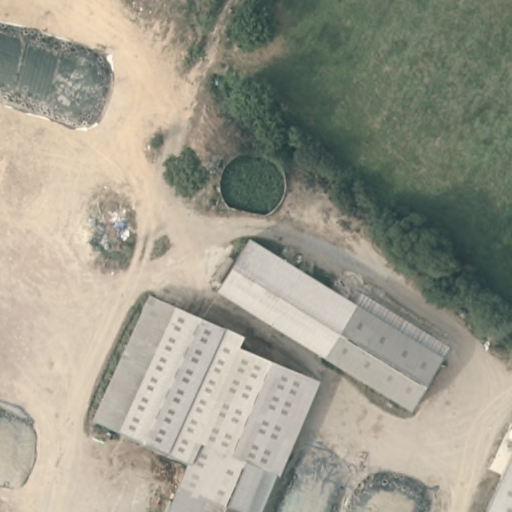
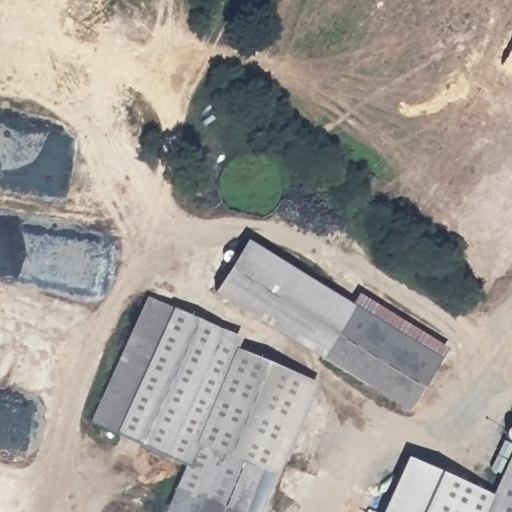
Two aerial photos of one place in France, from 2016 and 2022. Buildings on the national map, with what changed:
unchanged [(215,294),(245,244),(438,357),(408,409),(215,294)]
unchanged [(188,466),(93,423),(135,327),(145,311),(237,357),(305,387),(247,512),(168,512),(188,466)]
unchanged [(512,451),(512,512),(485,512),(512,451)]
new [(407,455),(493,493),(485,512),(382,512),(407,455)]

